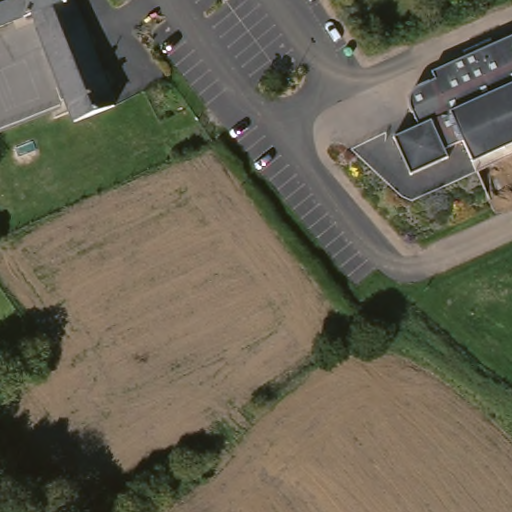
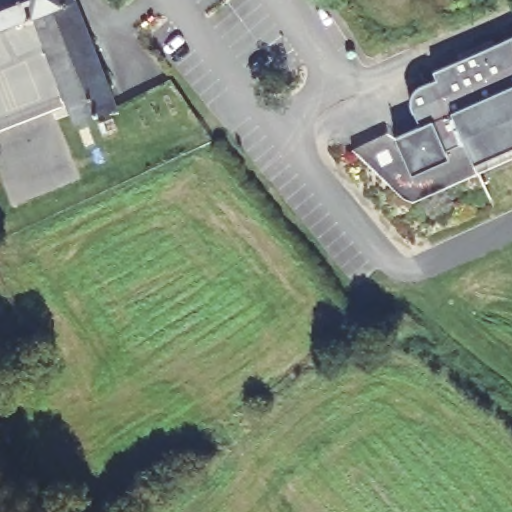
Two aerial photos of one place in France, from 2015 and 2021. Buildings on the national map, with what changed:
unchanged [(96,112),(79,120),(72,104),(32,15),(0,29),(0,0),(71,0),(117,102),(96,112)]
unchanged [(512,35),(512,146),(475,163),(465,141),(447,149),(451,157),(413,174),(396,137),(420,126),(412,108),(412,107),(412,106),(411,105),(411,104),(411,103),(411,102),(411,101),(411,100),(411,99),(411,98),(411,97),(412,96),(412,95),(412,94),(413,94),(413,93),(413,92),(414,92),(414,91),(414,90),(415,90),(415,89),(416,89),(416,88),(417,88),(417,87),(418,87),(418,86),(419,86),(420,86),(420,85),(421,85),(436,78),(433,71),(512,35)]
unchanged [(169,95),(170,122),(155,123),(154,95),(169,95)]

